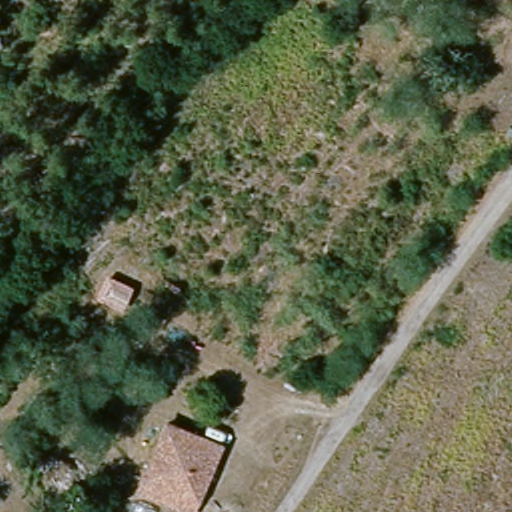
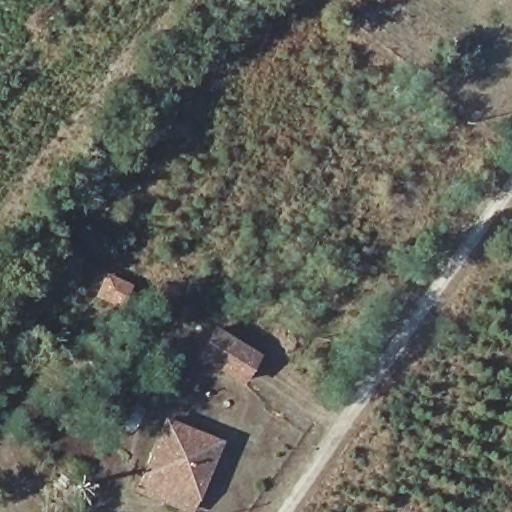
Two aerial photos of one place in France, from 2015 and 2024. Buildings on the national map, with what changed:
new [(262,353),(244,384),(196,355),(215,324),(262,353)]
unchanged [(167,415),(212,439),(191,486),(144,462),(167,415)]
unchanged [(191,486),(180,506),(133,483),(144,462),(191,486)]

